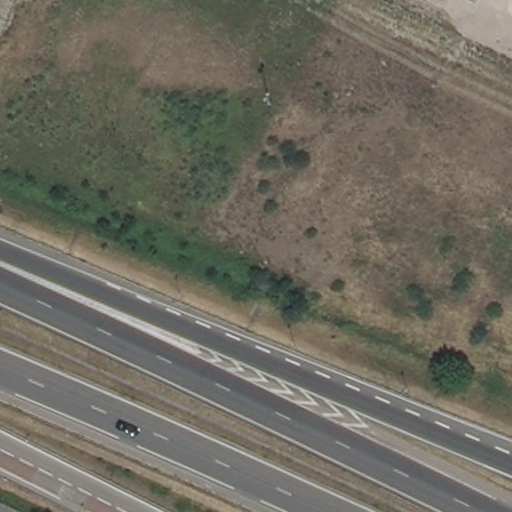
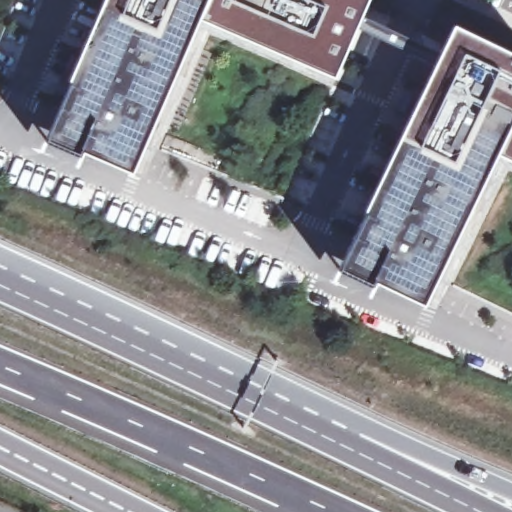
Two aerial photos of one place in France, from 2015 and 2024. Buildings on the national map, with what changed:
new [(104,0),(208,0),(200,20),(132,173),(82,152),(81,157),(43,141),(104,0)]
new [(208,0),(371,0),(357,36),(336,81),(200,20),(208,0)]
new [(337,270),(454,27),(512,54),(512,122),(496,155),(425,305),(377,282),(373,289),(337,270)]
new [(496,155),(512,122),(512,163),(496,155)]

